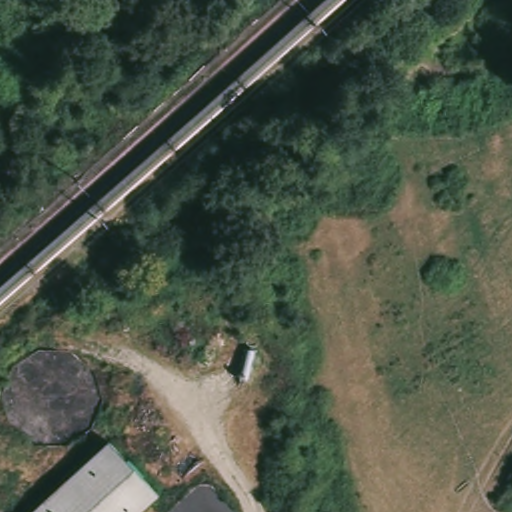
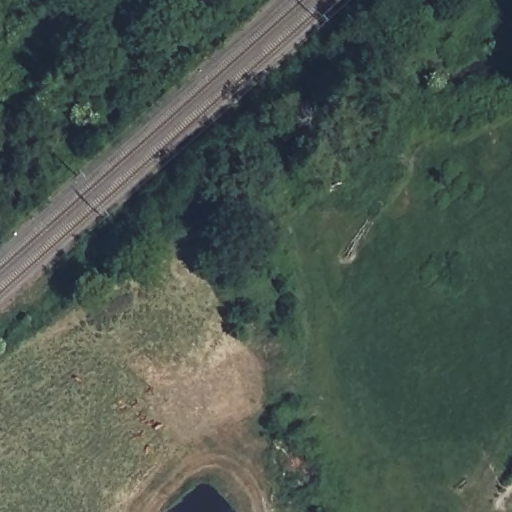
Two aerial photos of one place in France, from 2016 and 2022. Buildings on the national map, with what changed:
demolished [(103,443),(154,497),(138,512),(29,512),(103,443)]

